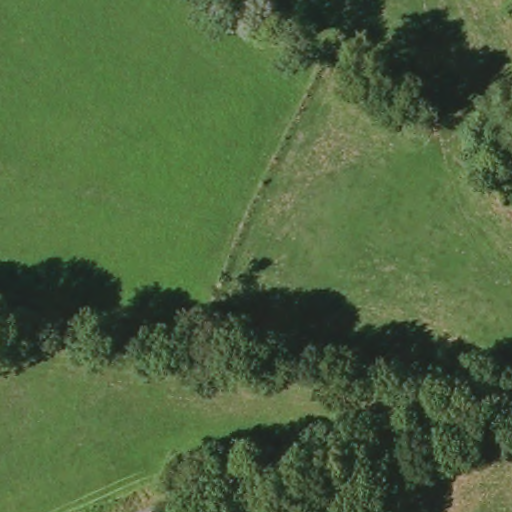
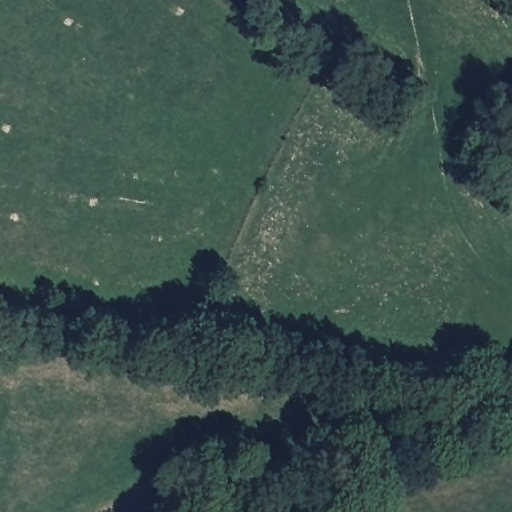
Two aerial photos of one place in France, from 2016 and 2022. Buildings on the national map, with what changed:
[]

